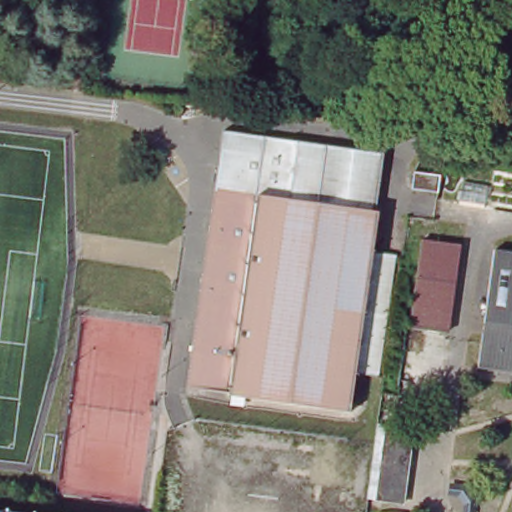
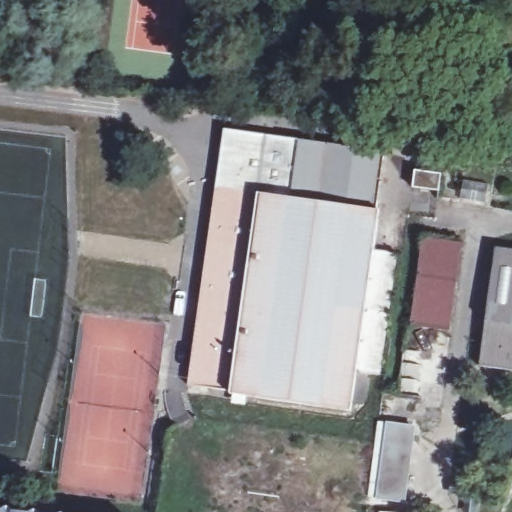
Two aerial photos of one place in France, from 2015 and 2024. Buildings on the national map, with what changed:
unchanged [(209,246),(214,215),(217,193),(221,168),(223,158),(226,134),(386,157),(377,216),(380,217),(374,256),(398,259),(379,381),(356,378),(351,416),(231,398),(232,395),(188,389),(194,343),(198,322),(205,274),(209,246)]
unchanged [(418,172),(441,175),(439,189),(416,186),(418,172)]
unchanged [(461,243),(448,330),(413,325),(427,238),(461,243)]
unchanged [(481,364),(498,247),(512,250),(512,369),(481,364)]
unchanged [(404,501),(379,497),(370,496),(378,442),(378,441),(381,424),(389,425),(414,428),(404,501)]

